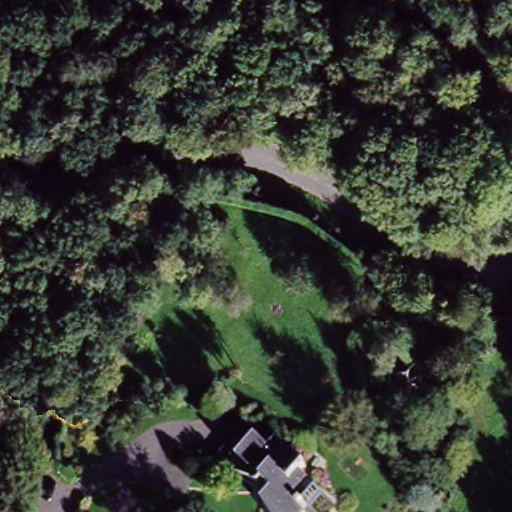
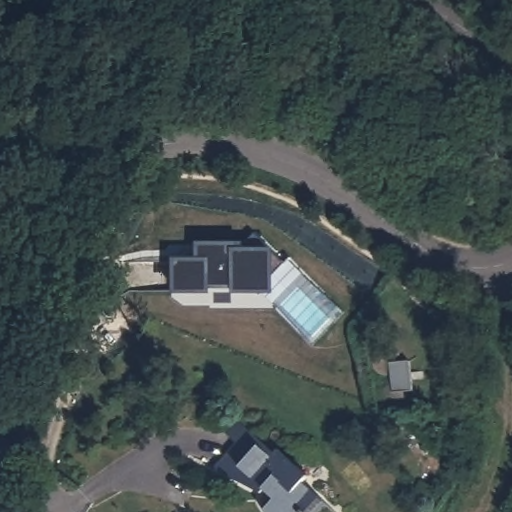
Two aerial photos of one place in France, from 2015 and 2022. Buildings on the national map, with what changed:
new [(180,265),(204,265),(204,250),(248,250),(258,240),(287,269),(260,295),(238,295),(238,290),(212,290),(212,295),(180,295),(180,265)]
unchanged [(303,482),(324,500),(313,512),(265,512),(264,510),(275,500),(264,490),(260,493),(229,477),(261,441),(274,453),(279,449),(309,476),(303,482)]

